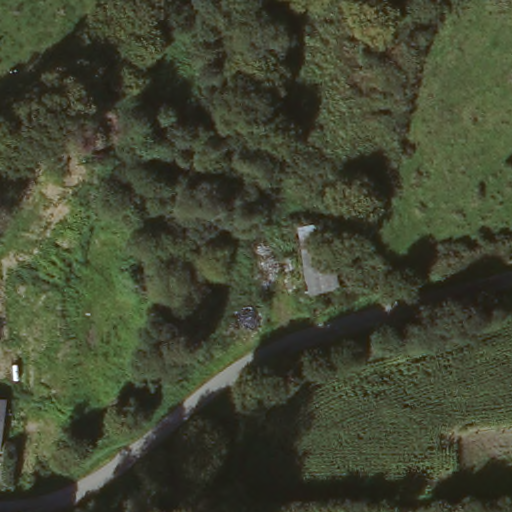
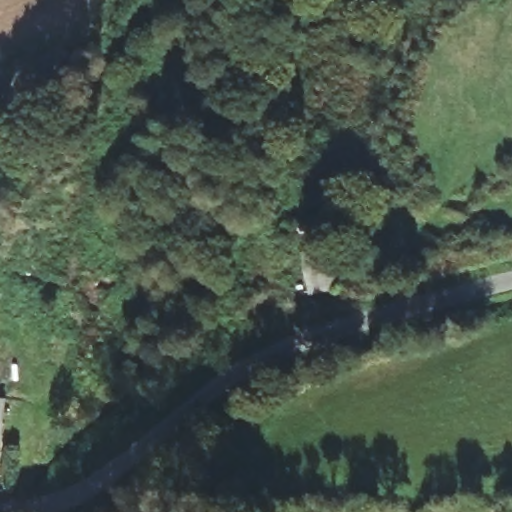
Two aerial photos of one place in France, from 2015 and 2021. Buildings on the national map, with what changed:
unchanged [(308,293),(297,228),(328,223),(340,288),(308,293)]
unchanged [(5,397),(2,421),(0,437),(0,396),(5,397)]

